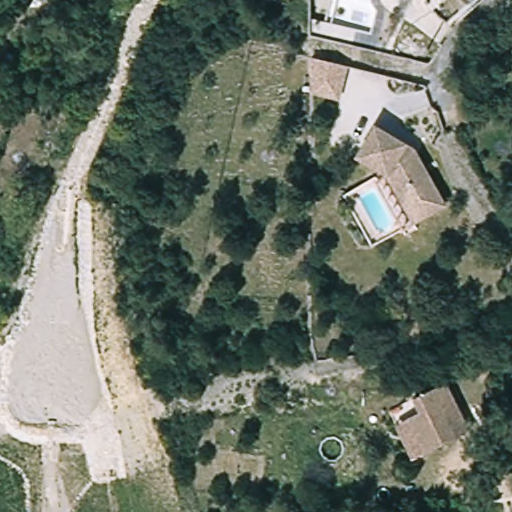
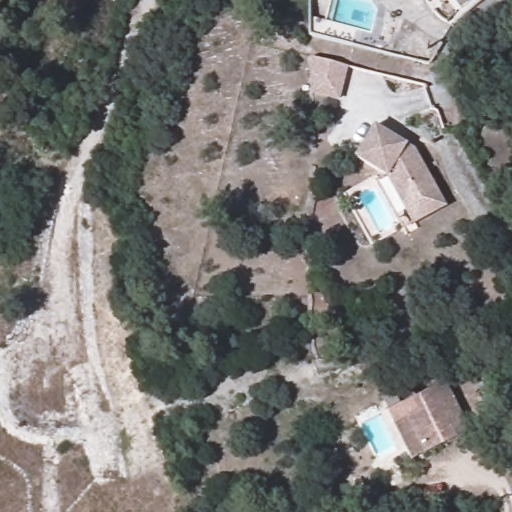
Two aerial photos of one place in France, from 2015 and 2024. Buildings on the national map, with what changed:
unchanged [(339,99),(306,91),(308,56),(348,65),(339,99)]
unchanged [(384,175),(380,173),(351,155),(371,122),(415,150),(446,205),(411,223),(384,175)]
unchanged [(470,427),(421,451),(402,412),(396,400),(410,393),(445,376),(470,427)]

